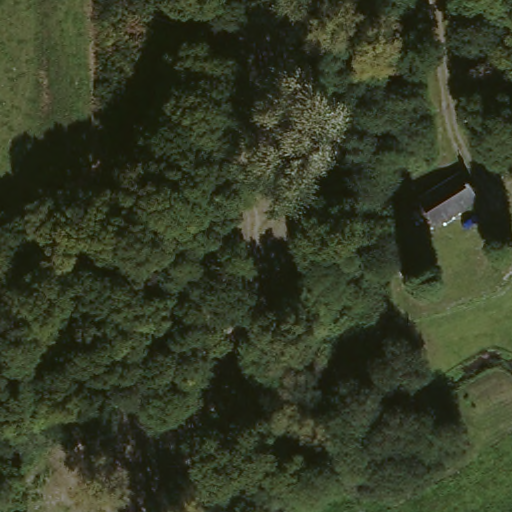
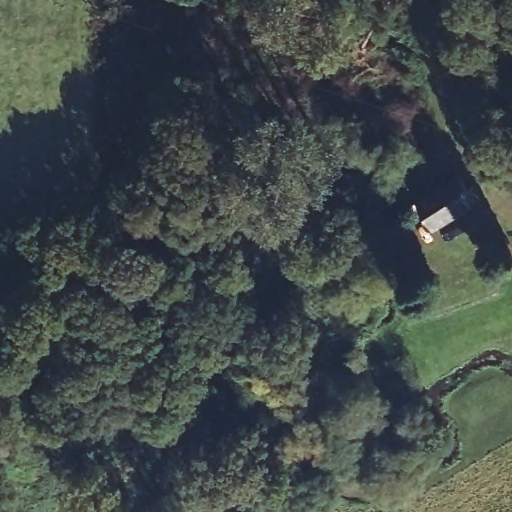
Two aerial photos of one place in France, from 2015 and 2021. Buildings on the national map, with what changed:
unchanged [(461,171),(480,200),(436,227),(419,198),(461,171)]

